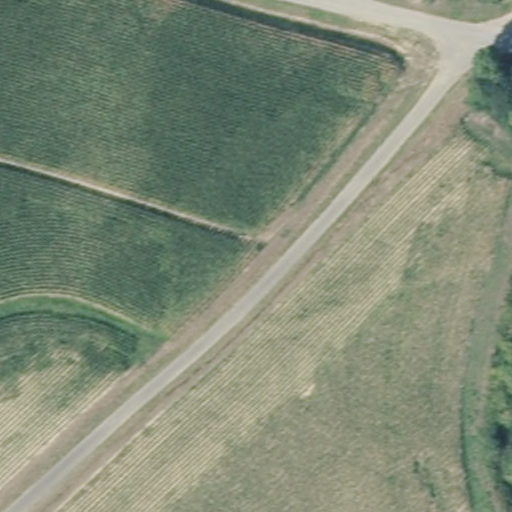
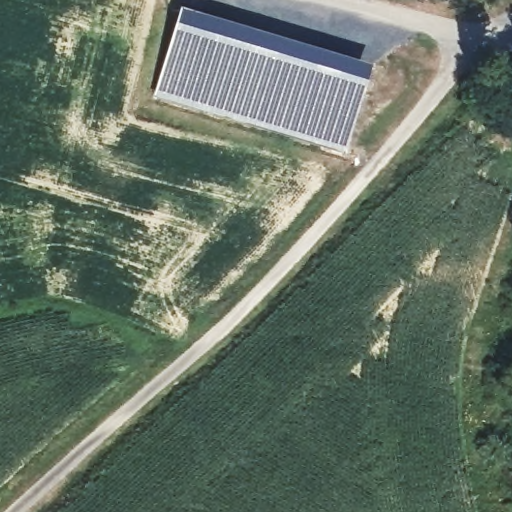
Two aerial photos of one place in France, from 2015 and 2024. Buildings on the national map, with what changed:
new [(175,24),(180,7),(370,65),(371,66),(366,80),(344,152),(155,94),(175,24)]

